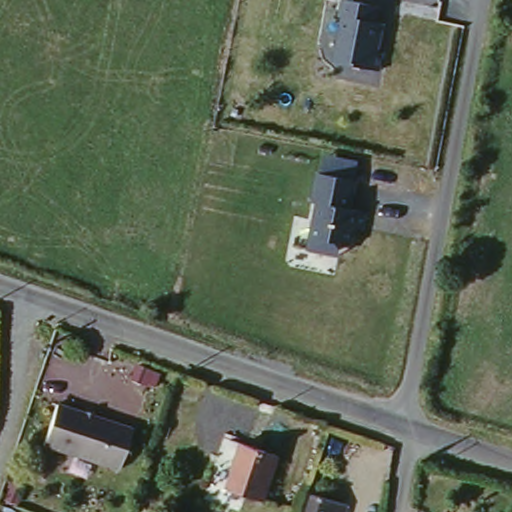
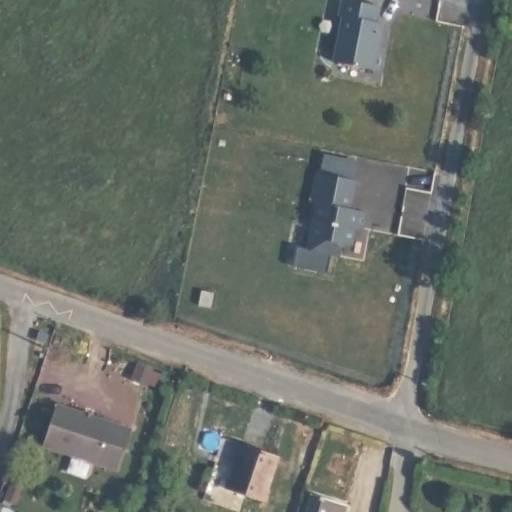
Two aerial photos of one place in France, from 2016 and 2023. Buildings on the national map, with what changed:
unchanged [(340,0),(361,0),(371,1),(370,20),(383,23),(377,70),(331,64),(340,0)]
unchanged [(318,203),(310,198),(316,172),(355,180),(346,209),(365,213),(360,235),(346,237),(340,257),(307,249),(318,203)]
unchanged [(134,422),(121,464),(45,442),(57,400),(134,422)]
unchanged [(262,504),(225,493),(241,444),(279,458),(262,504)]
unchanged [(345,504),(343,512),(302,512),(308,494),(345,504)]

